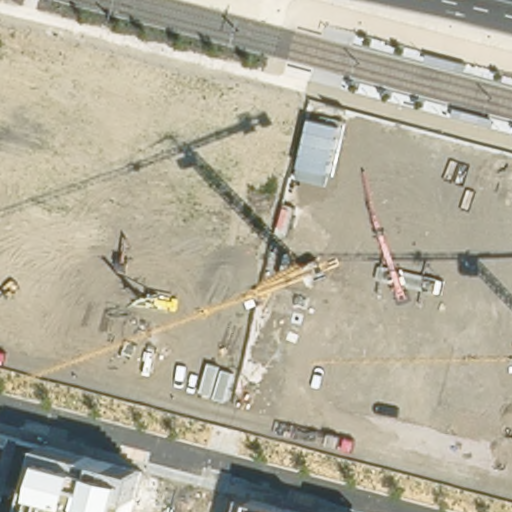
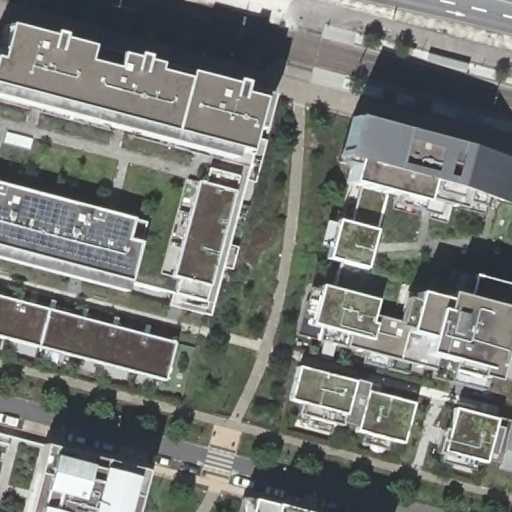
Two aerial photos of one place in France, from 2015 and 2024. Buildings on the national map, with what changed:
new [(239,86),(236,95),(265,102),(252,154),(0,89),(0,44),(5,26),(239,86)]
new [(0,89),(252,154),(246,180),(200,167),(167,291),(132,282),(147,222),(0,184),(0,89)]
new [(340,158),(350,117),(465,147),(463,153),(454,190),(425,182),(420,203),(352,161),(340,158)]
new [(328,258),(365,268),(375,230),(337,220),(346,184),(420,203),(425,182),(454,190),(463,153),(512,166),(512,288),(467,276),(461,298),(445,294),(442,302),(414,294),(406,326),(371,316),(375,301),(321,286),(328,258)]
new [(200,167),(246,180),(214,303),(172,293),(167,291),(200,167)]
new [(0,184),(147,222),(132,282),(129,294),(0,261),(0,184)]
new [(337,220),(375,230),(365,268),(328,258),(337,220)]
new [(405,331),(406,326),(414,294),(442,302),(445,294),(461,298),(467,276),(512,288),(512,317),(510,324),(502,322),(489,373),(485,386),(469,382),(472,368),(421,354),(424,338),(405,331)]
new [(307,338),(321,286),(375,301),(371,316),(406,326),(405,331),(424,338),(421,354),(472,368),(469,382),(307,338)]
new [(0,296),(175,342),(165,379),(0,336),(0,296)]
new [(489,373),(502,322),(510,324),(512,317),(512,380),(489,373)]
new [(356,429),(357,425),(342,421),(344,414),(290,399),(298,365),(368,384),(366,391),(412,403),(402,442),(356,429)]
new [(442,451),(454,408),(496,419),(495,424),(484,462),(442,451)]
new [(484,465),(484,462),(495,424),(512,429),(512,473),(484,465)]
unchanged [(24,512),(0,512),(0,433),(42,444),(24,512)]
unchanged [(144,470),(133,512),(24,512),(42,444),(144,470)]
unchanged [(272,505),(296,512),(238,512),(241,496),(272,505)]

